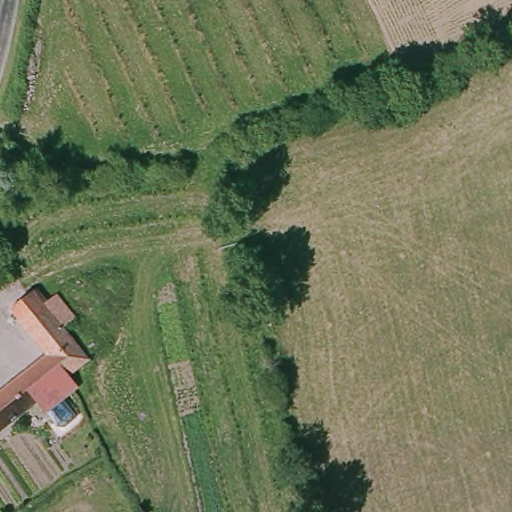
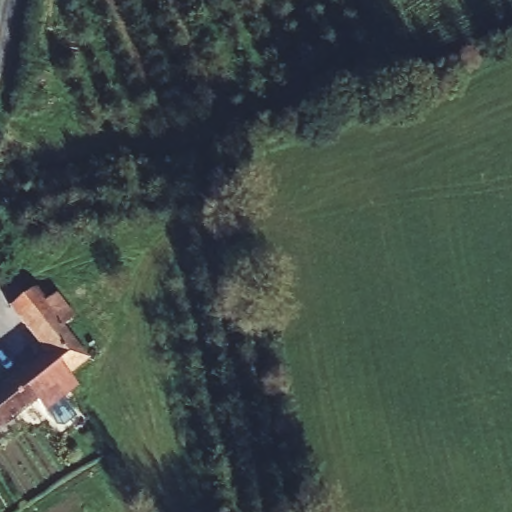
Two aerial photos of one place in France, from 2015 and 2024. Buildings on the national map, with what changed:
unchanged [(1,308),(10,300),(22,290),(31,300),(47,317),(85,361),(73,370),(62,378),(74,390),(67,396),(45,413),(34,402),(23,411),(12,420),(0,430),(0,386),(40,353),(1,308)]

